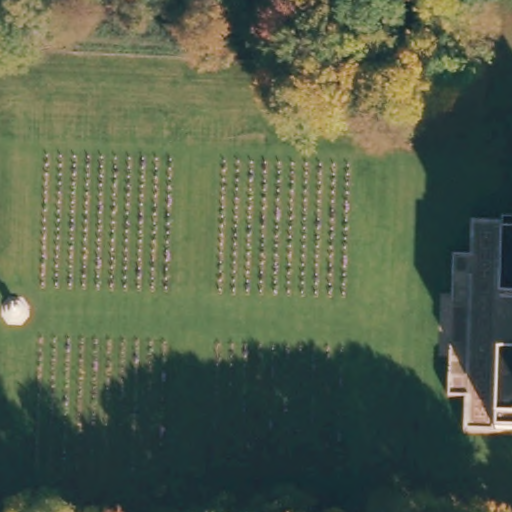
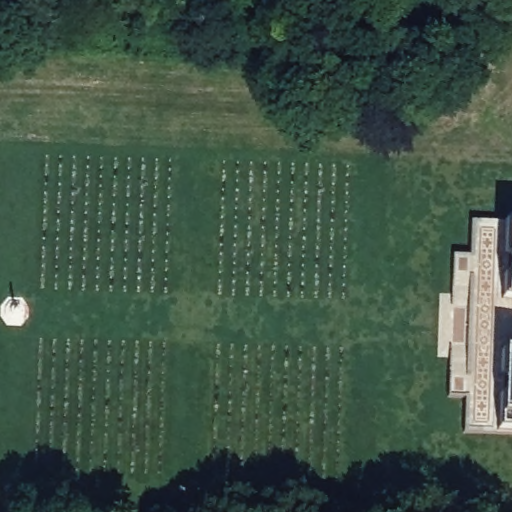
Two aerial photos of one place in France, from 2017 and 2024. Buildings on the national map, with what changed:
unchanged [(463,399),(447,400),(446,396),(452,257),(467,251),(470,217),(512,218),(512,433),(463,432),(463,399)]

